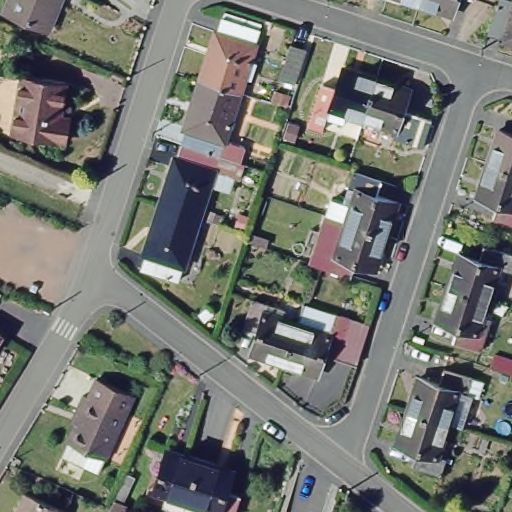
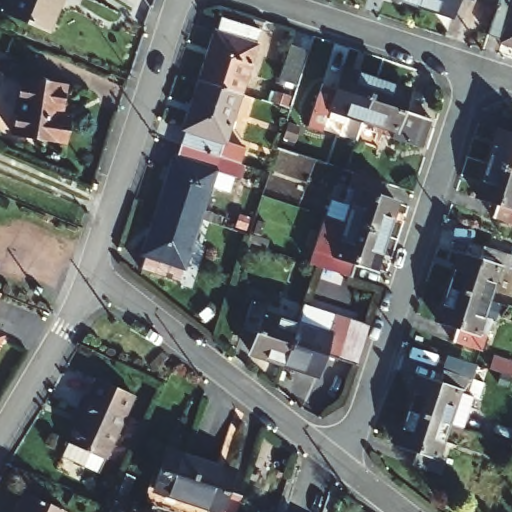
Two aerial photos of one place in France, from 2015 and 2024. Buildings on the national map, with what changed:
unchanged [(47,31),(3,12),(8,0),(60,0),(47,31)]
unchanged [(458,17),(424,6),(406,0),(463,0),(458,17)]
unchanged [(478,1),(474,0),(478,0),(478,1)]
unchanged [(512,47),(502,43),(503,40),(489,36),(500,0),(501,0),(512,4),(512,47)]
unchanged [(214,28),(217,29),(222,15),(259,27),(254,42),(256,43),(240,90),(198,76),(214,28)]
unchanged [(307,51),(295,87),(280,82),(292,47),(307,51)]
unchanged [(306,131),(313,112),(321,84),(336,89),(343,70),(376,81),(363,121),(329,109),(326,118),(320,136),(306,131)]
unchanged [(224,137),(246,144),(241,158),(181,139),(186,125),(183,124),(198,76),(240,90),(224,137)]
unchanged [(61,83),(57,114),(66,115),(63,140),(10,133),(18,77),(61,83)]
unchanged [(411,92),(404,112),(433,121),(423,149),(394,140),(397,132),(363,121),(376,81),(411,92)]
unchanged [(495,203),(476,196),(487,162),(498,128),(512,133),(512,225),(490,217),(495,203)]
unchanged [(174,152),(177,153),(181,139),(241,158),(236,173),(216,166),(199,215),(158,201),(174,152)]
unchanged [(356,191),(347,188),(352,173),(381,183),(376,198),(396,203),(384,237),(344,224),(356,191)]
unchanged [(183,265),(181,264),(177,277),(140,265),(144,250),(141,249),(158,201),(199,215),(183,265)]
unchanged [(384,237),(374,272),(354,265),(349,279),(321,269),(325,255),(334,258),(344,224),(384,237)]
unchanged [(482,244),(510,253),(512,254),(512,270),(505,268),(499,265),(488,299),(447,286),(458,253),(477,259),(482,244)]
unchanged [(476,334),(483,336),(479,350),(451,340),(454,327),(436,321),(447,286),(488,299),(476,334)]
unchanged [(2,294),(0,298),(0,294),(2,294)]
unchanged [(283,366),(249,355),(254,340),(239,335),(251,301),(266,306),(263,315),(296,326),(283,366)]
unchanged [(354,373),(334,366),(321,362),(316,377),(283,366),(296,326),(302,306),(369,328),(354,373)]
unchanged [(4,335),(0,341),(0,332),(4,335)]
unchanged [(80,402),(76,400),(83,385),(87,387),(94,370),(97,369),(106,373),(132,385),(133,387),(125,405),(104,450),(98,464),(67,450),(60,447),(67,433),(80,402)]
unchanged [(438,460),(433,473),(404,464),(409,450),(390,444),(401,410),(412,376),(431,383),(436,369),(464,379),(460,391),(467,393),(457,427),(442,423),(431,457),(438,460)]
unchanged [(178,494),(146,482),(160,442),(191,454),(178,494)]
unchanged [(218,485),(232,490),(225,512),(208,512),(210,506),(178,494),(191,454),(226,466),(218,485)]
unchanged [(45,503),(41,512),(15,512),(23,493),(45,503)]
unchanged [(64,512),(41,512),(45,503),(64,511),(64,512)]

